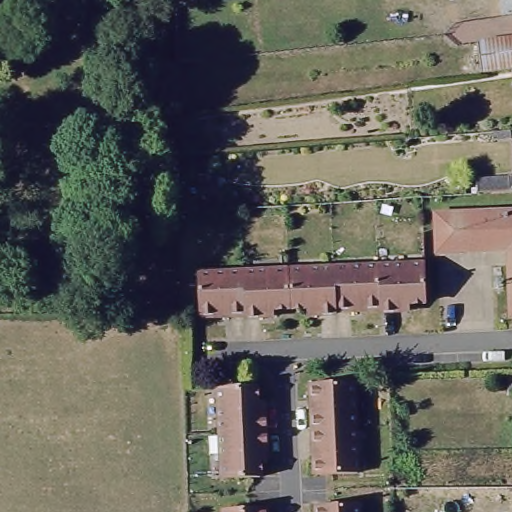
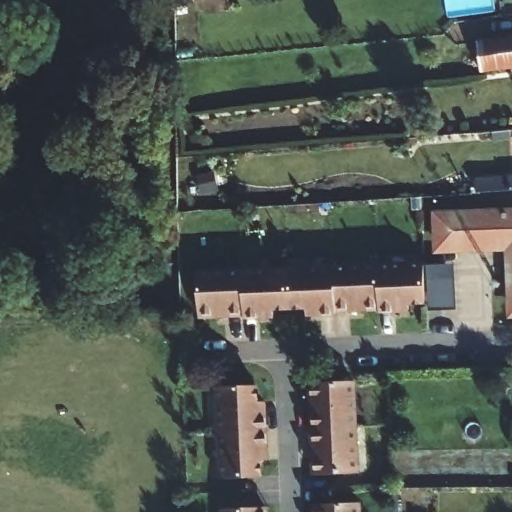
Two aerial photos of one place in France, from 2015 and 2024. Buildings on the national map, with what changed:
unchanged [(481,46),(512,42),(512,70),(484,72),(481,46)]
unchanged [(479,176),(512,174),(512,187),(479,190),(479,176)]
unchanged [(507,244),(435,245),(434,214),(512,212),(512,275),(507,275),(507,244)]
unchanged [(197,269),(429,263),(429,277),(422,277),(305,281),(198,283),(197,269)]
unchanged [(509,311),(509,307),(507,275),(512,275),(512,311),(509,311)]
unchanged [(198,283),(305,281),(422,277),(429,277),(430,302),(413,303),(413,310),(395,310),(304,312),(304,306),(272,307),(272,312),(199,315),(198,283)]
unchanged [(319,457),(315,456),(314,400),(317,400),(317,382),(357,380),(360,471),(319,472),(319,457)]
unchanged [(221,479),(220,388),(255,388),(255,405),(262,405),(264,462),(257,462),(257,478),(221,479)]
unchanged [(361,501),(361,512),(320,512),(320,502),(361,501)]
unchanged [(267,504),(267,512),(227,512),(227,505),(267,504)]

